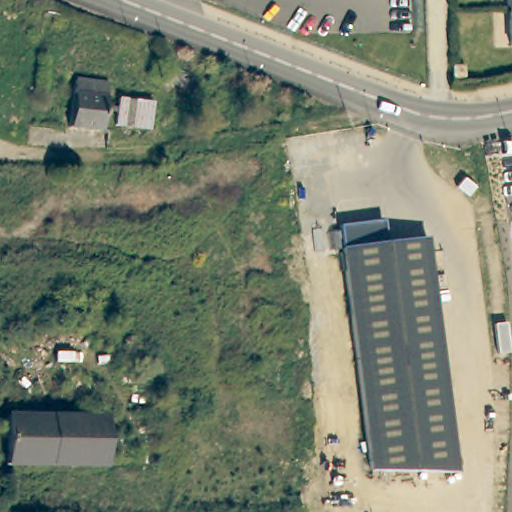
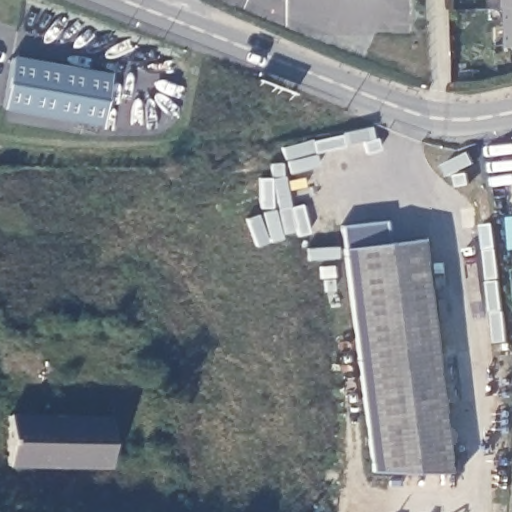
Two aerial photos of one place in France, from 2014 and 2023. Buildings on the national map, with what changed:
unchanged [(510,9),(507,9),(507,0),(512,0),(512,9),(510,9)]
unchanged [(511,49),(510,9),(512,9),(512,49),(511,49)]
new [(101,128),(3,111),(13,54),(110,73),(101,128)]
demolished [(103,134),(70,130),(77,83),(109,88),(103,134)]
demolished [(153,107),(149,134),(114,128),(118,101),(153,107)]
unchanged [(383,221),(385,243),(425,239),(454,474),(368,472),(338,226),(383,221)]
unchanged [(107,418),(106,466),(7,464),(7,416),(107,418)]

